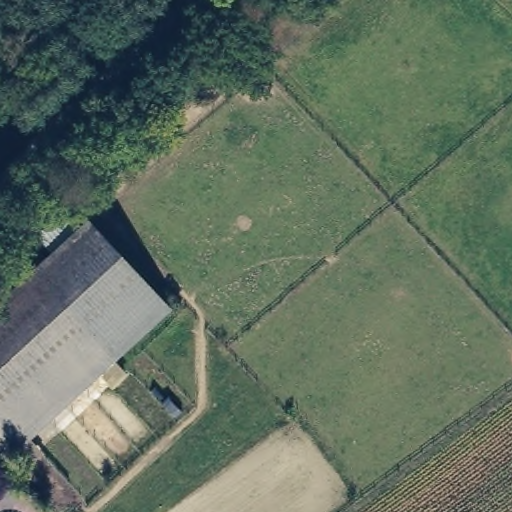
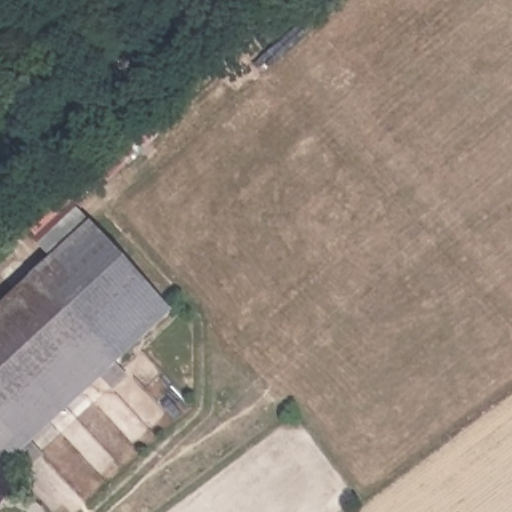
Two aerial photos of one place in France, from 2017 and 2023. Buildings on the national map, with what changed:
unchanged [(85,219),(167,306),(3,460),(0,457),(0,300),(85,219)]

